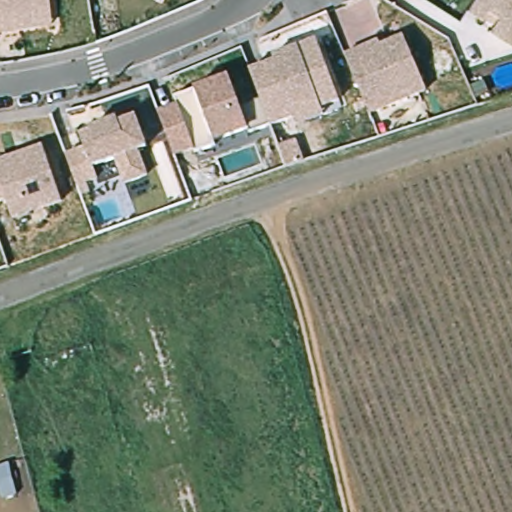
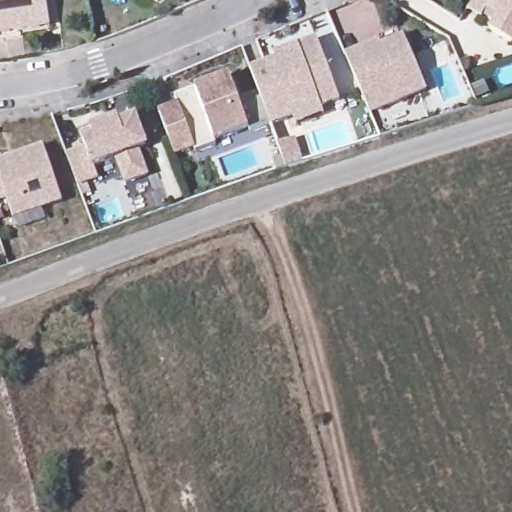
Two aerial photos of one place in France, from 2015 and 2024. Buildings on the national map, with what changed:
unchanged [(0,33),(0,0),(47,0),(51,26),(41,28),(0,33)]
unchanged [(512,0),(512,40),(492,27),(500,13),(490,6),(484,16),(470,7),(474,0),(512,0)]
unchanged [(380,42),(382,46),(405,37),(427,91),(371,115),(347,56),(362,50),(380,42)]
unchanged [(296,126),(293,119),(272,126),(262,100),(252,71),(277,61),(275,56),(317,40),(340,101),(321,109),(324,115),(296,126)]
unchanged [(160,114),(179,106),(176,97),(197,90),(196,89),(230,76),(242,108),(262,100),(272,126),(250,133),(249,129),(215,141),(217,146),(195,153),(194,148),(175,155),(160,114)]
unchanged [(120,123),(137,117),(147,146),(138,150),(147,175),(125,183),(117,158),(94,166),(98,178),(78,185),(67,154),(86,148),(83,141),(80,132),(91,128),(118,119),(120,123)]
unchanged [(62,200),(13,216),(7,197),(0,199),(0,159),(44,145),(62,200)]

